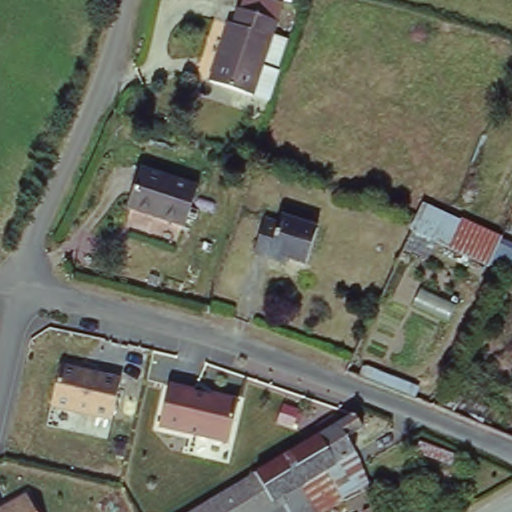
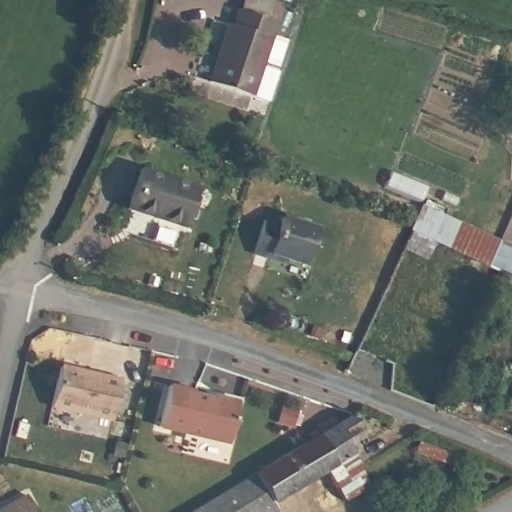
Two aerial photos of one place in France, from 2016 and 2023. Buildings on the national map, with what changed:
unchanged [(272,30),(251,95),(208,80),(224,32),(228,32),(232,19),(272,30)]
unchanged [(196,182),(185,220),(129,203),(140,166),(196,182)]
unchanged [(448,252),(435,246),(428,262),(402,250),(424,203),(460,219),(448,252)]
unchanged [(448,252),(461,216),(502,236),(498,243),(512,248),(512,280),(448,252)]
unchanged [(275,228),(277,222),(311,234),(298,268),(266,257),(263,263),(250,258),(261,224),(275,228)]
unchanged [(60,366),(120,381),(110,423),(50,410),(60,366)]
unchanged [(237,403),(220,453),(154,433),(167,383),(237,403)]
unchanged [(371,417),(354,426),(363,442),(357,446),(345,454),(327,424),(362,402),(371,417)]
unchanged [(295,444),(327,424),(345,454),(336,459),(307,478),(292,487),(303,512),(185,512),(210,497),(295,444)]
unchanged [(307,478),(336,459),(345,454),(348,452),(370,487),(327,512),(303,512),(292,487),(307,478)]
unchanged [(27,493),(34,512),(0,512),(0,508),(27,493)]
unchanged [(373,502),(378,512),(365,512),(362,507),(373,502)]

